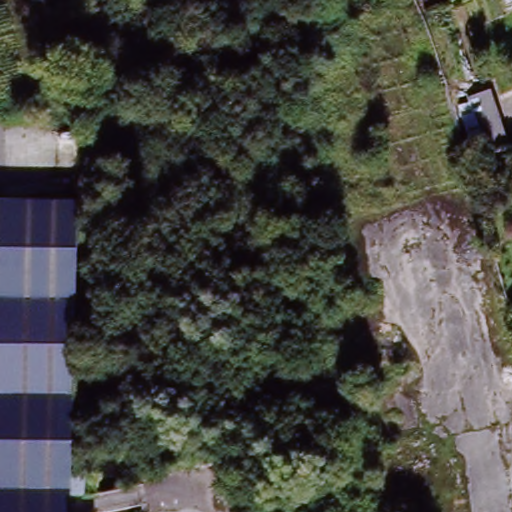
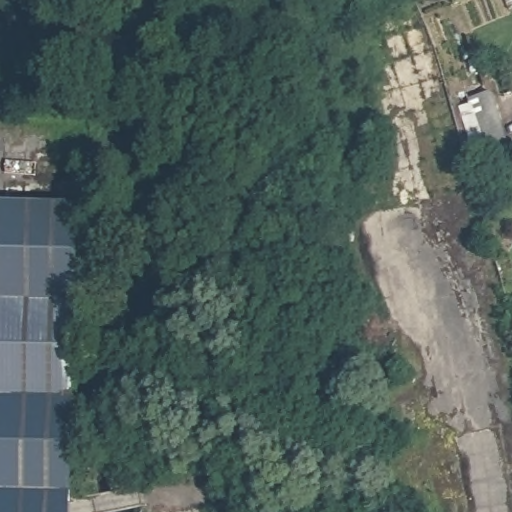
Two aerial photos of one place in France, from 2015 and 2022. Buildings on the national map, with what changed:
unchanged [(488,156),(480,117),(479,114),(475,100),(495,94),(498,111),(510,150),(488,156)]
unchanged [(20,186),(84,189),(72,512),(0,512),(0,203),(18,204),(20,186)]

